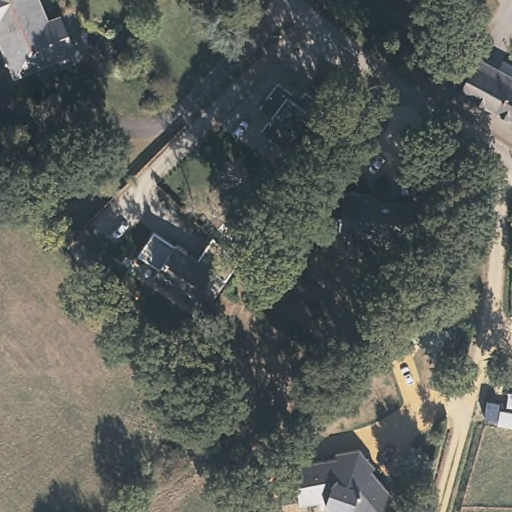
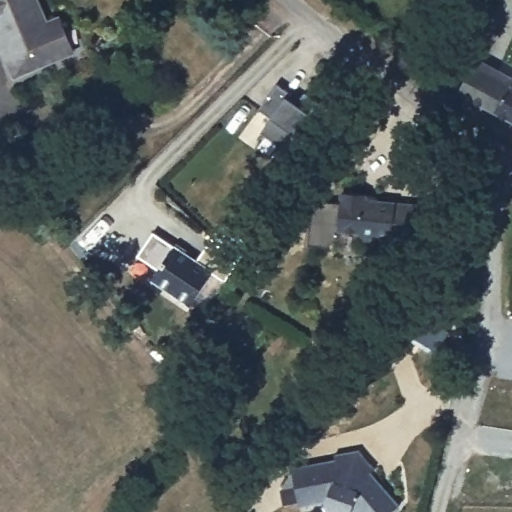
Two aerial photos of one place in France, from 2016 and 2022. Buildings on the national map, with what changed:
unchanged [(66,22),(77,51),(13,75),(0,39),(0,0),(31,0),(42,30),(66,22)]
unchanged [(512,82),(512,118),(456,86),(476,52),(512,73),(512,74),(509,80),(512,82)]
unchanged [(294,130),(290,146),(266,131),(275,116),(262,106),(277,86),(289,98),(309,114),(313,126),(307,138),(294,130)]
unchanged [(378,236),(375,239),(367,238),(363,235),(364,231),(341,229),(345,191),(368,193),(368,199),(397,201),(415,203),(413,224),(412,239),(378,236)]
unchanged [(226,281),(212,272),(191,304),(152,283),(161,270),(147,259),(161,239),(176,248),(200,263),(215,240),(237,263),(226,281)]
unchanged [(421,310),(450,328),(438,347),(424,339),(428,331),(413,322),(421,310)]
unchanged [(324,502),(300,507),(292,468),(337,459),(336,454),(360,450),(376,468),(372,472),(402,505),(394,512),(329,512),(324,502)]

